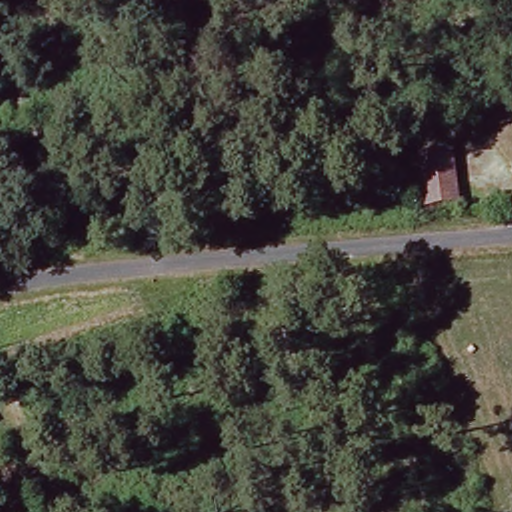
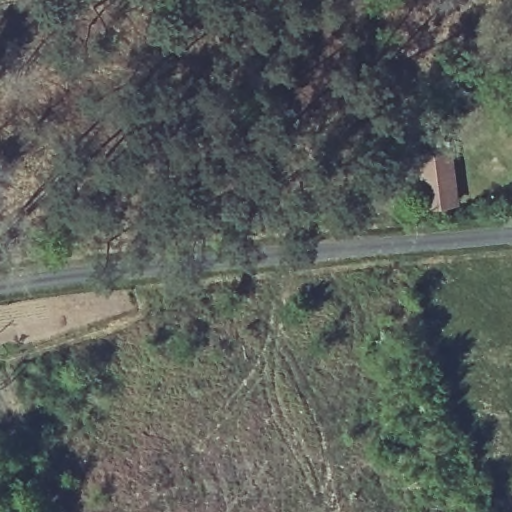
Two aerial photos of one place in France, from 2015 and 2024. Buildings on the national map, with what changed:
unchanged [(428,212),(426,159),(456,159),(458,210),(428,212)]

